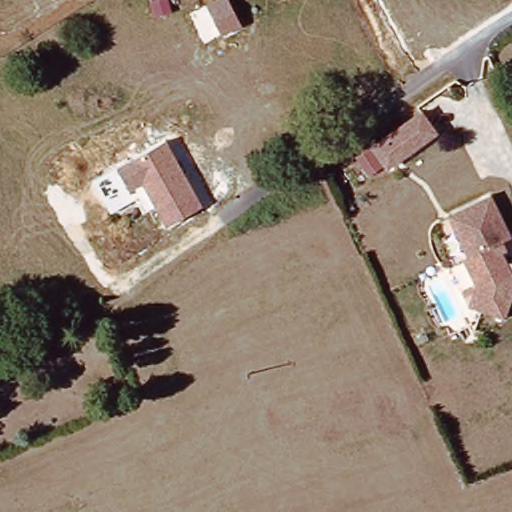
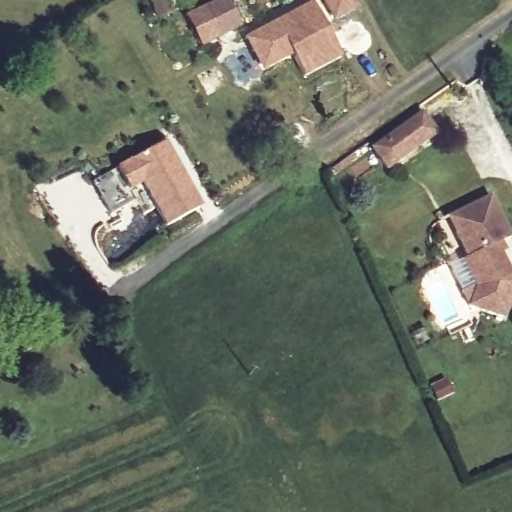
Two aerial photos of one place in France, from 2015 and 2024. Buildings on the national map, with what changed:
new [(201,10),(220,0),(221,0),(236,27),(197,48),(182,20),(201,10)]
new [(311,0),(341,56),(303,77),(291,55),(262,70),(243,37),(311,0)]
new [(358,8),(330,22),(318,0),(353,0),(358,8)]
unchanged [(425,115),(432,125),(434,130),(439,136),(387,170),(384,165),(373,146),(376,144),(425,115)]
unchanged [(202,206),(166,228),(153,206),(146,211),(136,197),(111,212),(93,181),(164,141),(202,206)]
unchanged [(474,281),(463,256),(468,255),(448,214),(492,194),(511,235),(497,240),(512,272),(512,291),(504,316),(469,305),(474,281)]

